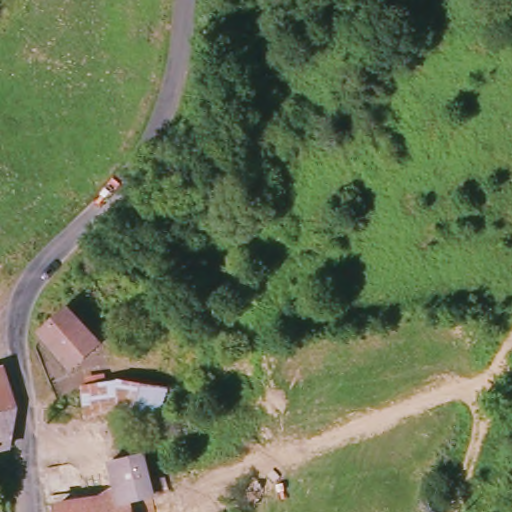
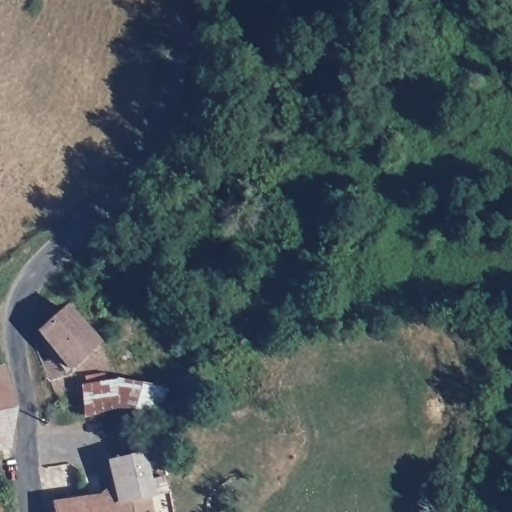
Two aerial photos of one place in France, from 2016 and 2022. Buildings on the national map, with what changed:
unchanged [(34,339),(64,308),(101,346),(69,376),(34,339)]
unchanged [(3,369),(13,409),(21,443),(0,451),(0,370),(3,369)]
unchanged [(80,389),(120,382),(164,393),(163,414),(149,411),(118,408),(82,412),(80,389)]
unchanged [(104,493),(100,465),(142,457),(147,483),(158,481),(162,497),(128,505),(129,512),(58,512),(56,503),(104,493)]

